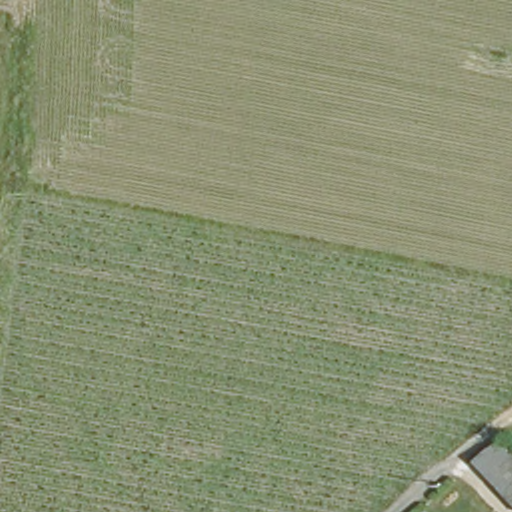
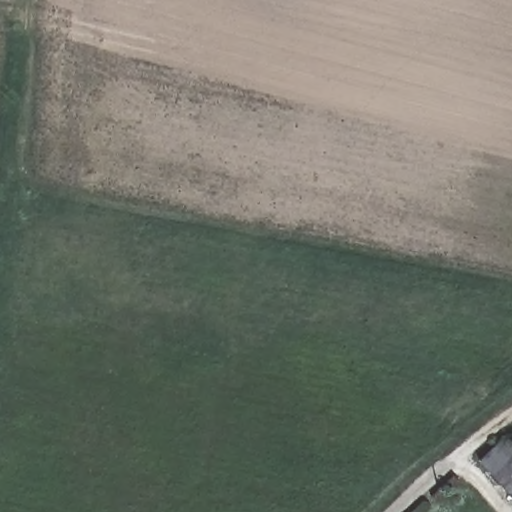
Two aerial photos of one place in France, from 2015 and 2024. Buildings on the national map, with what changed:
unchanged [(502,426),(512,435),(512,496),(472,454),(502,426)]

